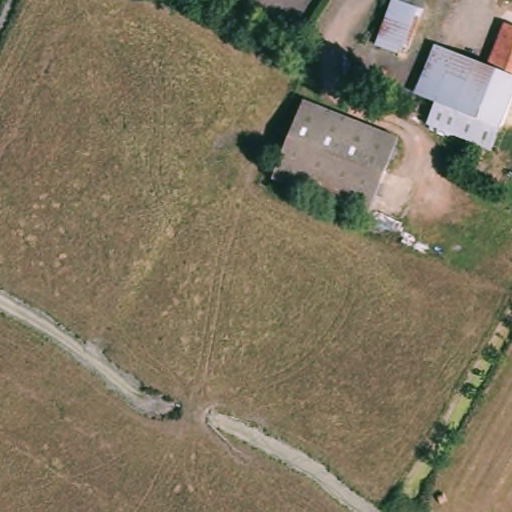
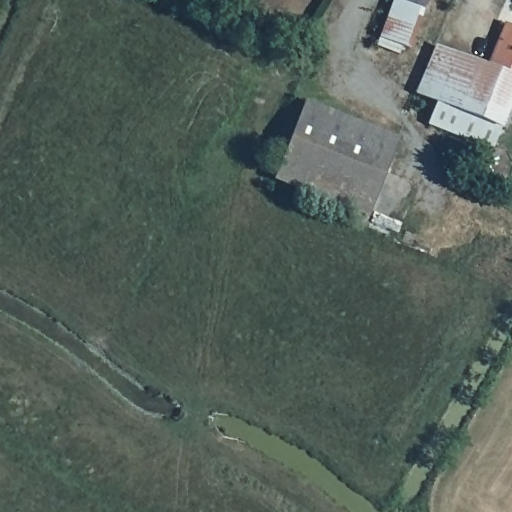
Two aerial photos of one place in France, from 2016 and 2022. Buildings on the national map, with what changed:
unchanged [(405,52),(377,37),(395,1),(424,14),(405,52)]
unchanged [(512,29),(512,90),(480,74),(503,25),(512,29)]
unchanged [(430,47),(480,74),(512,90),(512,100),(495,134),(449,111),(410,90),(430,47)]
unchanged [(360,227),(268,181),(305,106),(397,152),(360,227)]
unchanged [(449,111),(495,134),(484,155),(438,133),(449,111)]

